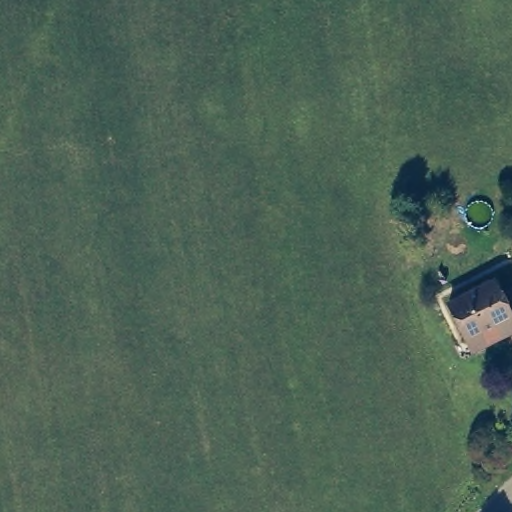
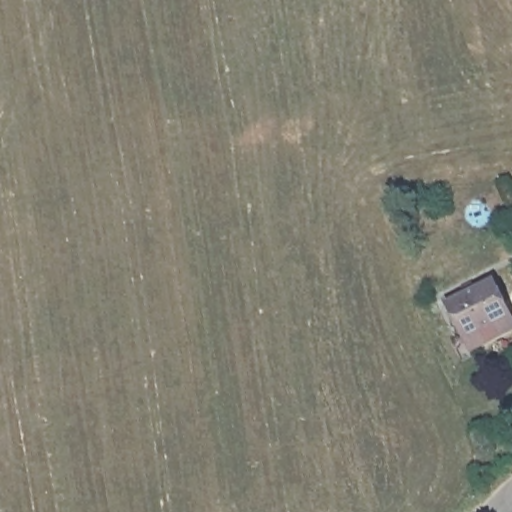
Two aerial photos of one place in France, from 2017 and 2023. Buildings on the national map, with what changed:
unchanged [(512,305),(512,312),(470,333),(452,297),(497,275),(512,305)]

